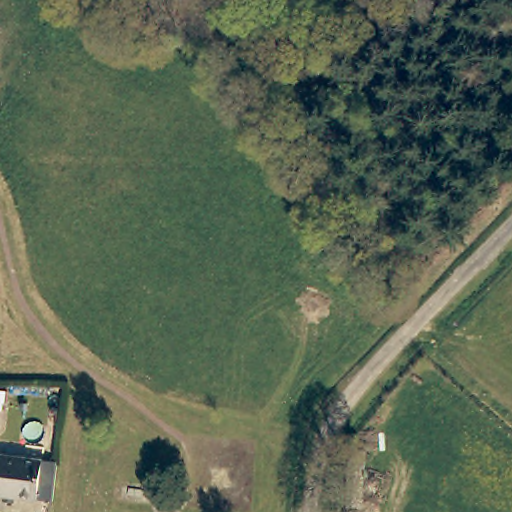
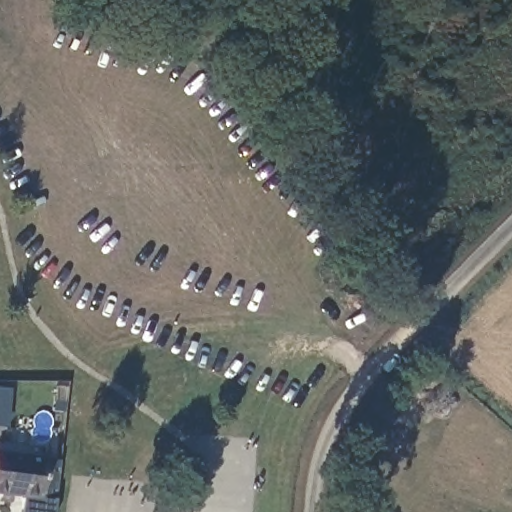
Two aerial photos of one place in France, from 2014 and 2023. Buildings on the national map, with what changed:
unchanged [(0,409),(0,392),(4,391),(5,409),(0,409)]
unchanged [(51,457),(47,496),(0,491),(0,451),(51,457)]

